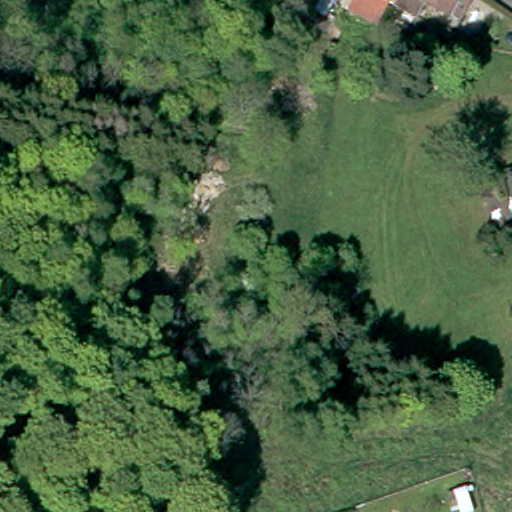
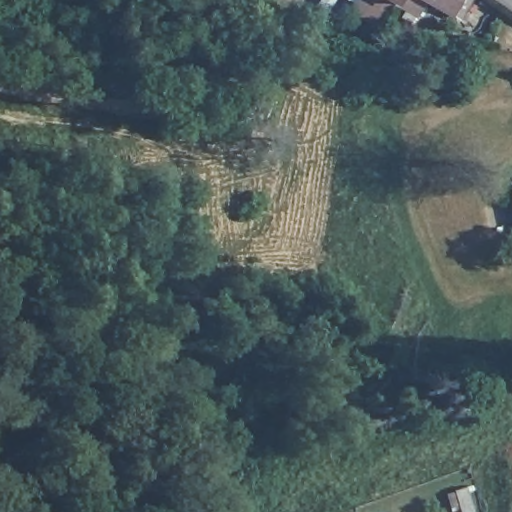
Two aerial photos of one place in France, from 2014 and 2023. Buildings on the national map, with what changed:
unchanged [(418,2),(409,17),(389,5),(379,0),(467,0),(454,22),(444,17),(418,2)]
unchanged [(512,200),(508,181),(512,180),(512,200)]
unchanged [(472,512),(460,512),(454,492),(466,489),(472,512)]

